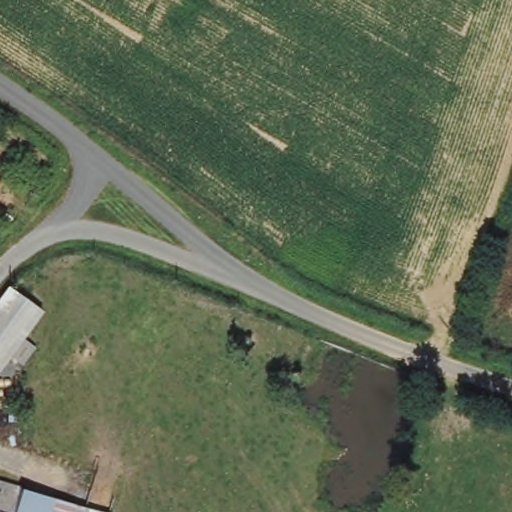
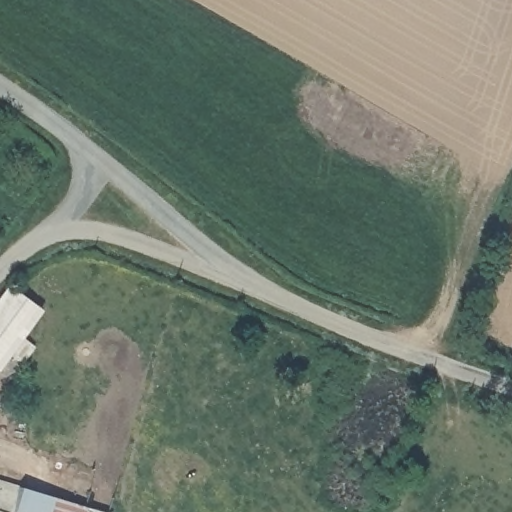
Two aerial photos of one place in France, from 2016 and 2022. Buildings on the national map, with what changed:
unchanged [(0,366),(0,298),(11,283),(45,305),(23,334),(36,343),(25,358),(12,375),(0,366)]
unchanged [(0,512),(0,477),(29,486),(29,487),(21,512),(0,512)]
unchanged [(21,512),(29,487),(111,512),(21,512)]

